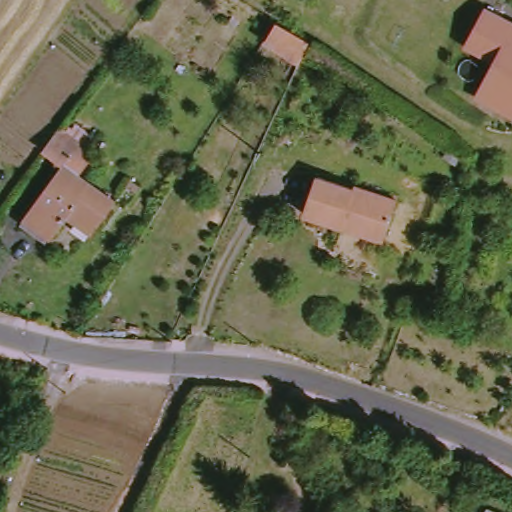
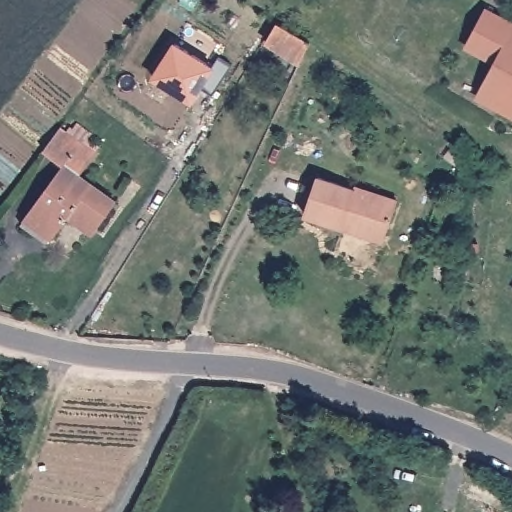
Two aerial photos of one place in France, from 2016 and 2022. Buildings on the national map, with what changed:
unchanged [(485,88),(488,81),(498,63),(469,47),(488,10),(512,23),(512,114),(480,97),(485,88)]
unchanged [(276,22),(308,41),(298,61),(265,41),(276,22)]
new [(191,110),(151,83),(175,47),(215,72),(191,110)]
unchanged [(100,154),(87,175),(123,204),(100,236),(75,217),(58,239),(32,219),(70,165),(52,151),(68,129),(100,154)]
unchanged [(348,230),(311,217),(323,180),(360,193),(361,189),(405,206),(392,241),(390,246),(348,230)]
unchanged [(501,512),(495,512),(495,509),(501,512)]

